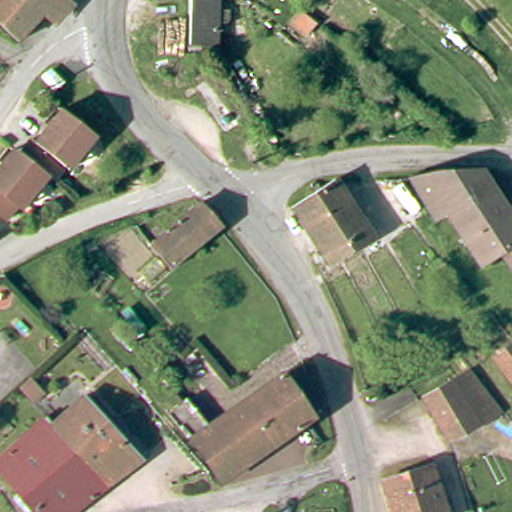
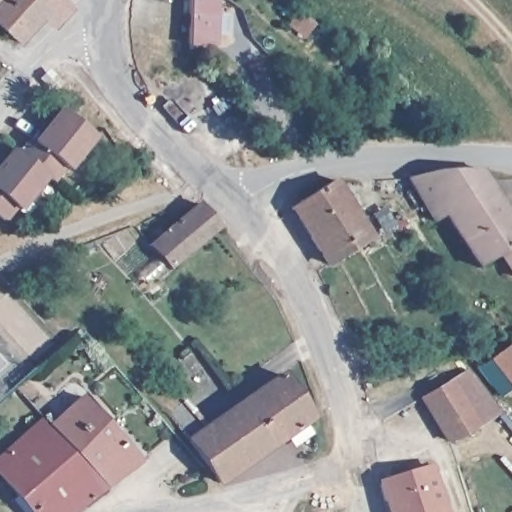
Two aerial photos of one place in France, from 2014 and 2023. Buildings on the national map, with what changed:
unchanged [(0,23),(0,0),(46,0),(14,36),(0,23)]
unchanged [(207,15),(212,15),(213,15),(212,46),(199,45),(194,44),(185,44),(186,4),(186,0),(207,0),(206,8),(207,15)]
unchanged [(85,154),(69,171),(64,167),(53,180),(48,175),(36,190),(33,187),(6,218),(0,213),(0,166),(17,148),(22,152),(34,138),(38,141),(62,113),(66,110),(73,116),(98,139),(85,154)]
unchanged [(512,273),(497,250),(476,263),(441,209),(429,217),(402,173),(425,167),(476,164),(482,172),(512,218),(512,272),(512,273)]
unchanged [(335,174),(373,231),(328,259),(292,201),(335,174)]
unchanged [(200,196),(222,223),(172,265),(158,250),(148,240),(136,222),(154,210),(165,226),(173,219),(200,196)]
unchanged [(490,360),(511,344),(512,345),(512,380),(508,383),(490,360)]
unchanged [(478,416),(449,432),(425,388),(453,372),(478,416)]
unchanged [(212,471),(189,440),(284,373),(314,418),(278,443),(220,483),(212,471)]
unchanged [(49,406),(55,414),(81,391),(137,455),(102,482),(39,415),(49,406)]
unchanged [(7,496),(13,490),(0,475),(0,447),(38,413),(39,415),(102,482),(64,512),(31,512),(27,508),(23,512),(19,512),(7,496)]
unchanged [(382,477),(433,460),(449,512),(391,512),(382,477)]

